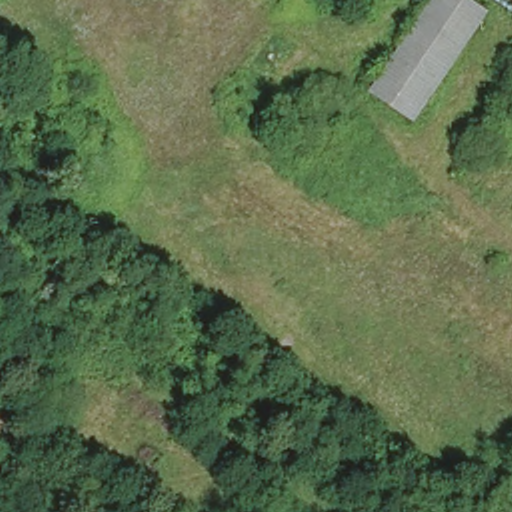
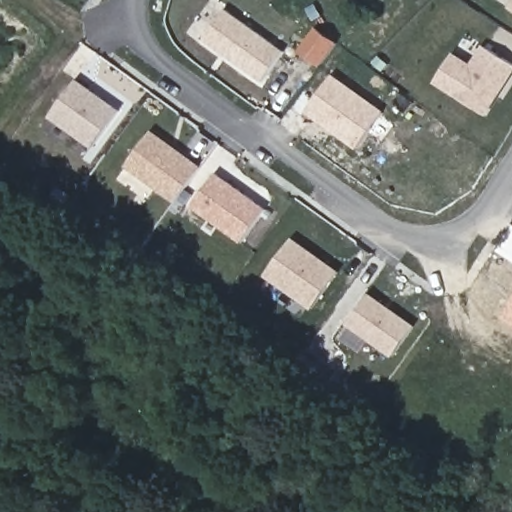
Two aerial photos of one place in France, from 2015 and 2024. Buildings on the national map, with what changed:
demolished [(433,0),(470,0),(487,12),(414,122),(371,94),(433,0)]
demolished [(494,0),(512,0),(512,16),(494,0)]
new [(510,0),(512,0),(512,6),(508,4),(510,0)]
new [(224,10),(282,52),(261,82),(202,39),(224,10)]
new [(482,115),(433,83),(451,56),(470,68),(483,47),(512,65),(512,70),(499,90),(495,96),(482,115)]
new [(385,112),(357,150),(306,112),(333,74),(385,112)]
new [(75,82),(117,113),(91,148),(48,117),(75,82)]
new [(150,134),(199,170),(175,202),(126,166),(150,134)]
new [(215,175),(263,212),(240,244),(190,208),(215,175)]
new [(292,240),(337,273),(312,308),(266,276),(292,240)]
new [(367,295),(412,327),(391,356),(347,323),(367,295)]
new [(512,300),(512,323),(501,317),(512,300)]

